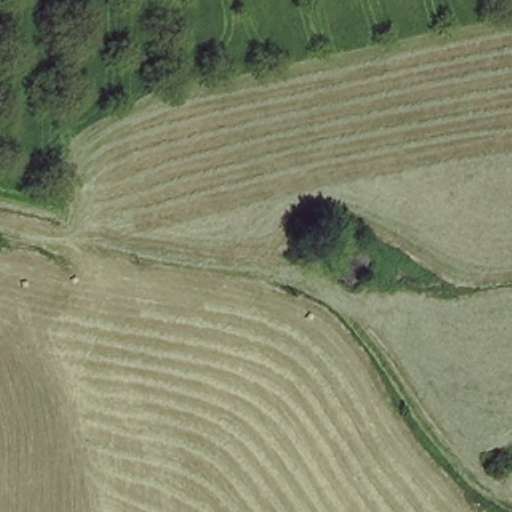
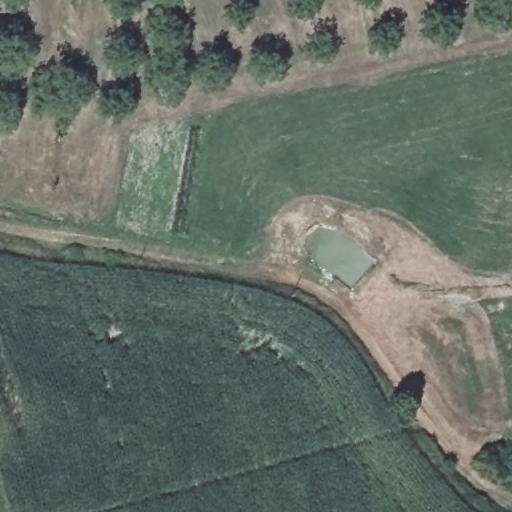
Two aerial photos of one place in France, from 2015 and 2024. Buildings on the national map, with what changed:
[]

